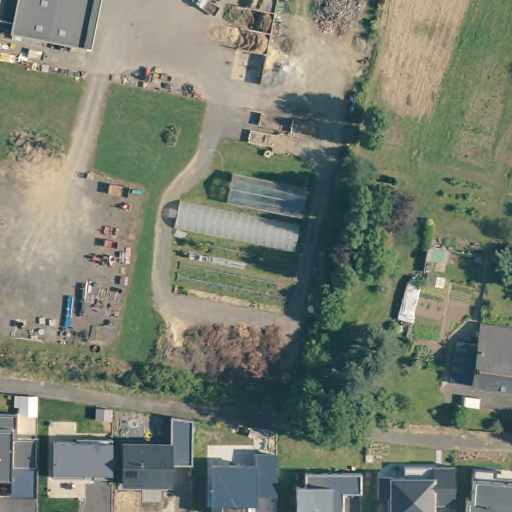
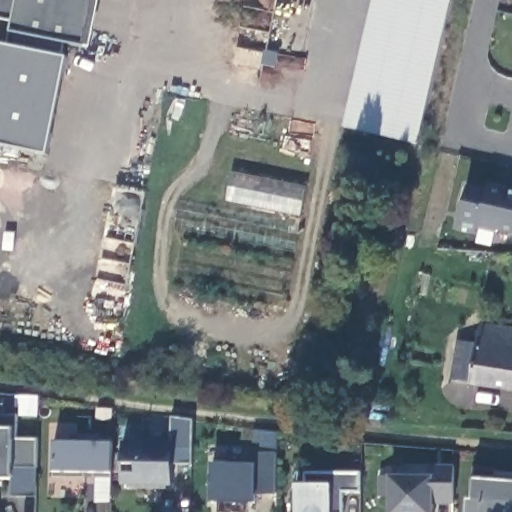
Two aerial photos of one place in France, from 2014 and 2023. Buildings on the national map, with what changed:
unchanged [(10,30),(12,19),(0,16),(0,0),(100,0),(90,46),(10,30)]
new [(344,128),(374,0),(451,0),(419,144),(344,128)]
new [(62,56),(67,57),(47,154),(0,145),(0,43),(9,45),(12,30),(65,41),(62,56)]
unchanged [(307,182),(301,213),(227,199),(234,167),(307,182)]
new [(496,232),(458,225),(468,187),(486,191),(489,184),(508,188),(507,190),(512,191),(512,233),(499,229),(496,232)]
unchanged [(226,206),(227,199),(301,213),(293,255),(162,227),(169,197),(226,206)]
unchanged [(431,229),(450,230),(449,245),(439,244),(429,244),(431,229)]
unchanged [(477,375),(457,373),(464,335),(483,338),(486,318),(512,322),(512,384),(476,378),(477,375)]
unchanged [(17,415),(16,439),(37,440),(37,497),(12,496),(12,478),(0,478),(0,415),(17,415)]
unchanged [(170,442),(171,417),(193,419),(193,464),(172,465),(172,486),(123,487),(122,442),(170,442)]
unchanged [(112,442),(113,474),(54,474),(55,442),(112,442)]
unchanged [(255,463),(256,453),(278,454),(278,494),(257,495),(257,504),(247,504),(247,512),(220,512),(219,504),(208,503),(209,464),(255,463)]
unchanged [(403,475),(404,466),(455,466),(454,504),(434,505),(434,512),(390,512),(390,497),(378,497),(379,476),(389,474),(403,475)]
unchanged [(361,473),(361,493),(343,493),(343,512),(296,512),(296,485),(305,484),(304,473),(361,473)]

